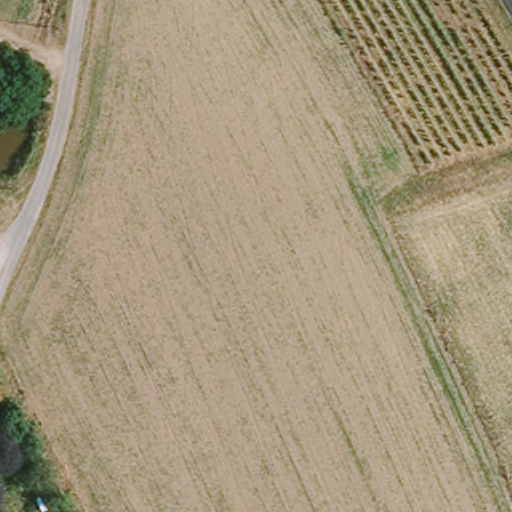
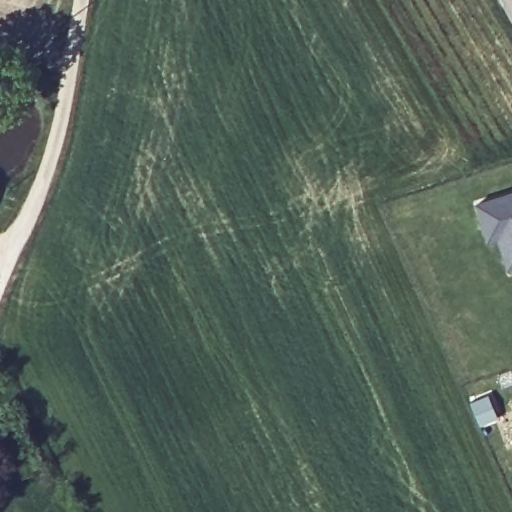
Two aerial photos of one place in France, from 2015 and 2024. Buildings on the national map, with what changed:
unchanged [(0,200),(0,187),(5,189),(0,200)]
new [(500,237),(490,240),(478,204),(512,192),(512,268),(510,268),(500,237)]

